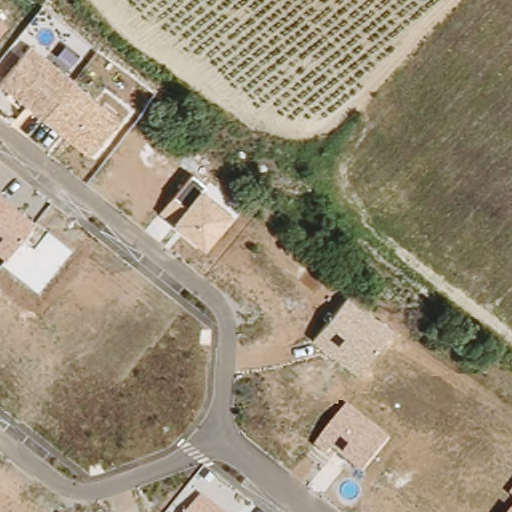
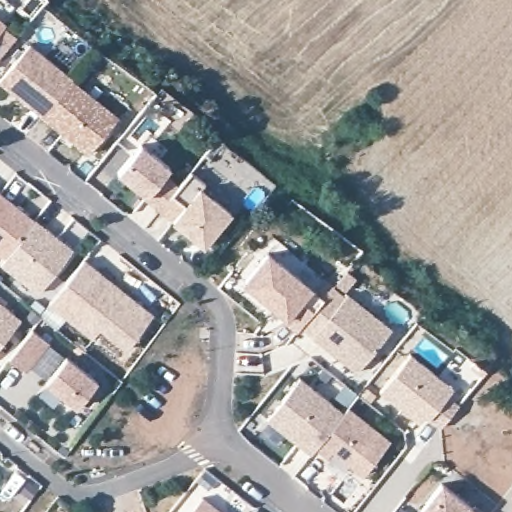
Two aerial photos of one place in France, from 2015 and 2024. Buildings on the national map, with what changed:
unchanged [(5,21),(0,27),(0,17),(5,21)]
unchanged [(30,41),(118,115),(88,151),(0,81),(0,78),(30,41)]
new [(170,165),(165,171),(179,184),(173,190),(172,192),(159,209),(144,198),(147,195),(118,172),(140,144),(170,165)]
unchanged [(172,192),(190,170),(206,181),(203,185),(232,210),(204,245),(173,220),(172,220),(159,209),(172,192)]
unchanged [(34,219),(5,256),(0,252),(0,192),(34,219)]
new [(73,248),(38,292),(0,263),(5,256),(34,219),(73,248)]
unchanged [(243,283),(265,255),(322,300),(297,331),(283,320),(285,317),(270,305),(264,300),(243,283)]
new [(63,314),(49,303),(84,260),(101,273),(110,280),(153,314),(125,348),(96,325),(89,335),(63,314)]
unchanged [(347,291),(391,326),(356,370),(312,335),(347,291)]
new [(0,343),(0,301),(21,316),(0,343)]
new [(32,328),(49,342),(26,371),(8,357),(32,328)]
new [(409,355),(452,388),(446,396),(458,405),(439,429),(427,420),(422,426),(379,392),(409,355)]
new [(66,356),(97,380),(77,406),(45,381),(66,356)]
new [(344,411),(316,447),(311,453),(266,418),(299,378),(344,411)]
unchanged [(348,405),(390,438),(363,474),(333,450),(328,456),(316,447),(348,405)]
new [(442,484),(472,508),(474,506),(480,512),(419,512),(442,484)]
unchanged [(204,495),(224,512),(190,512),(204,495)]
unchanged [(512,495),(512,498),(511,497),(512,495)]

